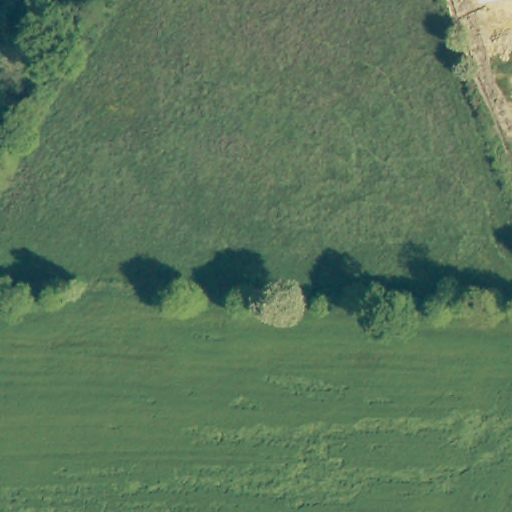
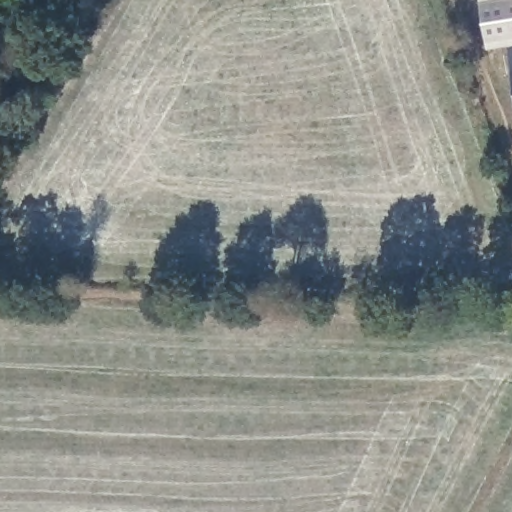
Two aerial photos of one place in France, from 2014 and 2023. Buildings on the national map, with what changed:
unchanged [(484,0),(504,0),(485,3),(484,0)]
new [(492,50),(485,3),(504,0),(512,0),(512,46),(511,46),(492,50)]
new [(512,46),(512,53),(511,46),(512,46)]

